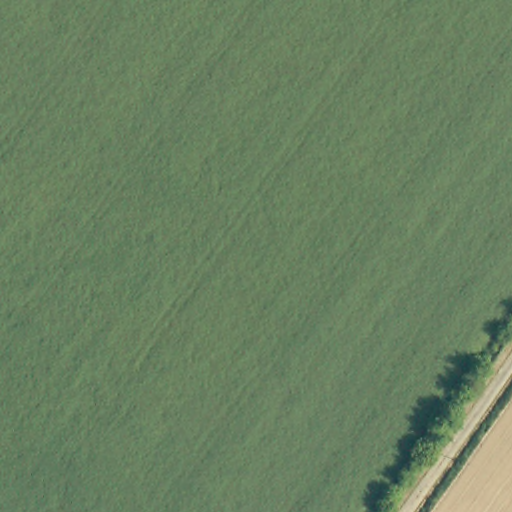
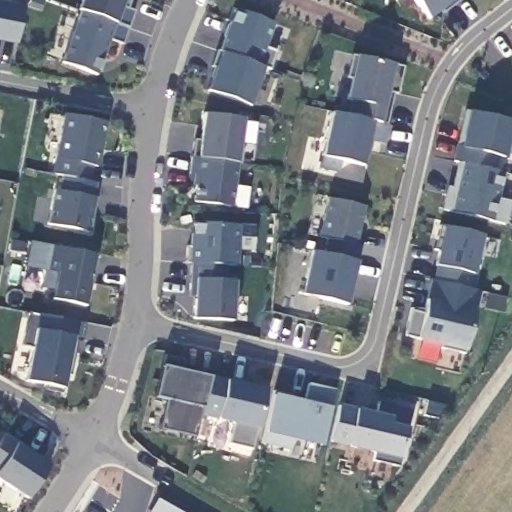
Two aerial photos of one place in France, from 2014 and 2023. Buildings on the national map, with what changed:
new [(135,10),(129,28),(115,22),(82,9),(77,7),(80,0),(130,0),(127,7),(135,10)]
new [(442,8),(428,20),(414,0),(459,0),(445,11),(442,8)]
new [(19,45),(0,42),(0,2),(27,8),(19,45)]
new [(129,28),(122,46),(109,41),(97,77),(61,62),(82,9),(129,28)]
new [(235,10),(273,24),(265,47),(277,51),(270,70),(264,67),(219,51),(235,10)]
new [(216,69),(212,67),(217,50),(219,51),(264,67),(250,106),(207,91),(216,69)]
new [(351,102),(347,100),(356,56),(395,65),(404,67),(397,94),(394,94),(387,124),(380,124),(347,116),(351,102)]
new [(495,170),(457,162),(460,147),(467,109),(512,120),(512,129),(506,157),(499,155),(495,170)]
new [(380,124),(387,124),(388,125),(383,144),(368,140),(362,166),(341,161),(338,173),(319,169),(332,112),(347,116),(380,124)]
new [(106,122),(97,167),(92,165),(89,180),(96,181),(92,197),(96,197),(89,233),(47,225),(54,189),(60,190),(62,176),(52,174),(65,114),(106,122)]
new [(244,120),(232,209),(191,204),(195,176),(187,175),(192,139),(200,140),(205,114),(244,120)]
new [(442,210),(447,186),(451,187),(457,162),(505,172),(498,198),(511,201),(506,224),(442,210)]
new [(356,244),(360,245),(357,261),(323,254),(327,240),(318,236),(328,197),(365,206),(356,244)]
new [(239,225),(237,266),(224,265),(222,280),(235,280),(233,321),(193,319),(195,296),(189,296),(190,263),(192,222),(239,225)]
new [(412,307),(425,310),(427,299),(430,280),(433,280),(435,265),(443,226),(483,235),(475,273),(471,288),(480,290),(475,310),(466,350),(465,353),(441,347),(441,345),(417,340),(418,337),(406,335),(412,307)]
new [(55,246),(63,249),(96,255),(86,306),(51,300),(53,290),(41,287),(44,270),(26,267),(30,242),(55,246)]
new [(302,295),(312,251),(323,254),(357,261),(346,305),(302,295)]
new [(39,315),(85,324),(79,355),(70,353),(62,388),(25,382),(31,347),(22,345),(29,313),(39,315)]
new [(164,356),(185,361),(182,370),(209,376),(228,380),(267,389),(258,427),(252,449),(229,443),(234,423),(218,420),(200,416),(196,437),(161,429),(167,398),(156,395),(162,366),(164,356)]
new [(305,400),(308,383),(335,389),(331,407),(321,446),(293,440),(290,450),(262,443),(265,433),(273,393),(305,400)]
new [(376,452),(330,443),(338,405),(357,409),(377,414),(380,404),(412,410),(400,465),(373,461),(376,452)]
new [(4,436),(15,443),(50,466),(29,498),(0,482),(0,443),(4,436)]

